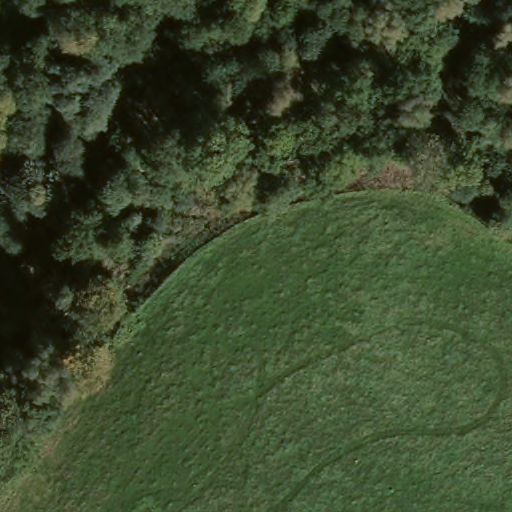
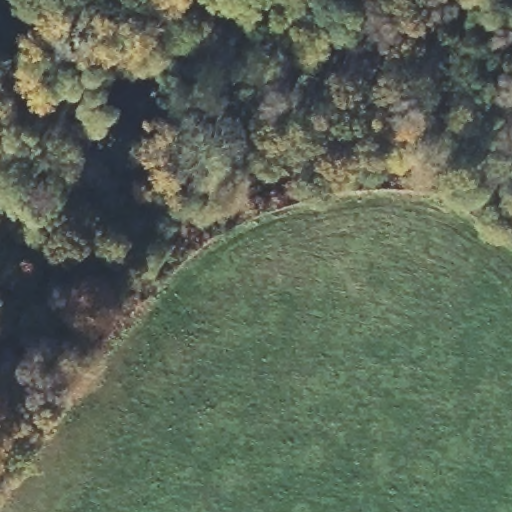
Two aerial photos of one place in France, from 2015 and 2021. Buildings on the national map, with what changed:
[]

